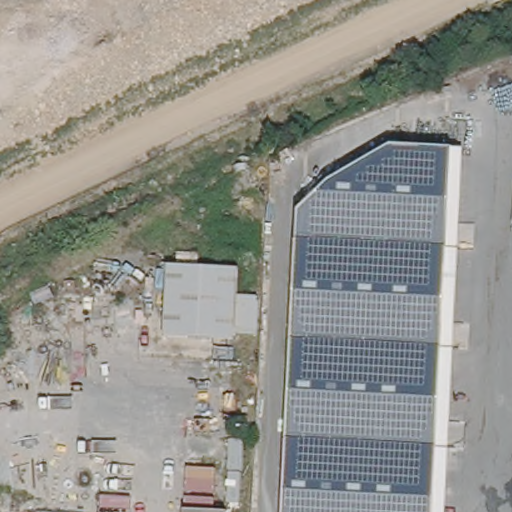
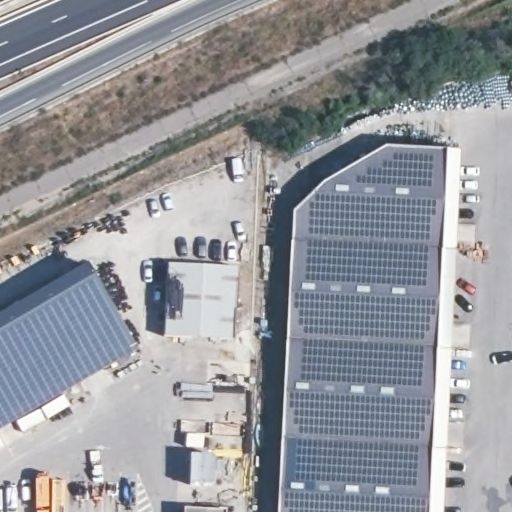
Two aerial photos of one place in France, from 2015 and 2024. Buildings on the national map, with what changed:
unchanged [(326,171),(398,145),(459,148),(454,240),(449,340),(440,490),(439,512),(285,512),(287,480),(297,282),(301,200),(326,171)]
unchanged [(239,265),(237,335),(167,333),(170,261),(239,265)]
new [(0,435),(0,325),(88,273),(140,354),(0,435)]
unchanged [(225,512),(187,512),(187,506),(225,507),(225,512)]

